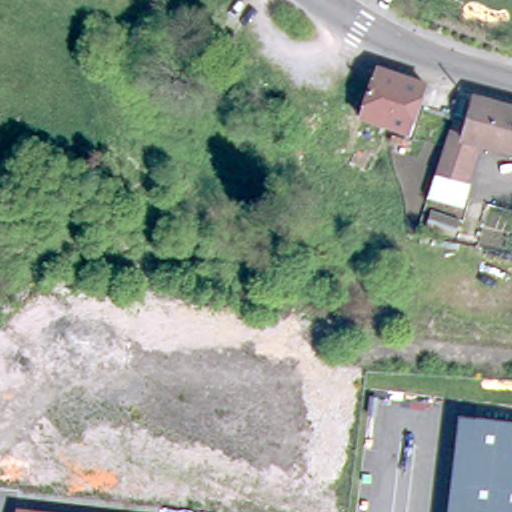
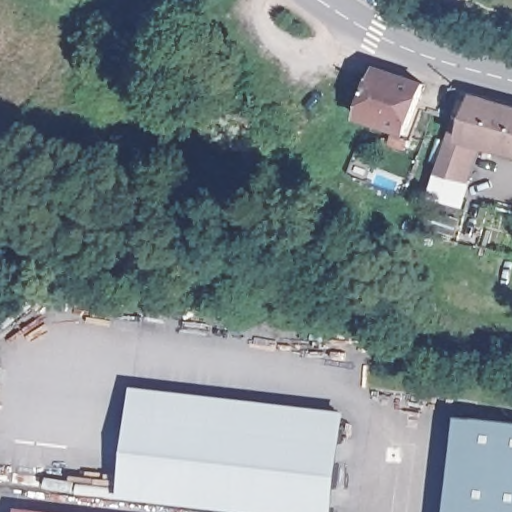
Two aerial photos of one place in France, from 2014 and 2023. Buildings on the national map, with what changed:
unchanged [(424,77),(407,127),(386,120),(370,167),(342,158),(376,61),(424,77)]
unchanged [(474,123),(482,95),(512,104),(512,152),(481,144),(469,141),(474,123)]
unchanged [(437,171),(455,117),(474,123),(469,141),(481,144),(470,181),(437,171)]
new [(335,512),(248,512),(120,497),(132,385),(345,410),(335,512)]
unchanged [(457,417),(512,420),(512,512),(447,512),(457,417)]
unchanged [(18,503),(52,507),(92,512),(17,512),(18,503)]

